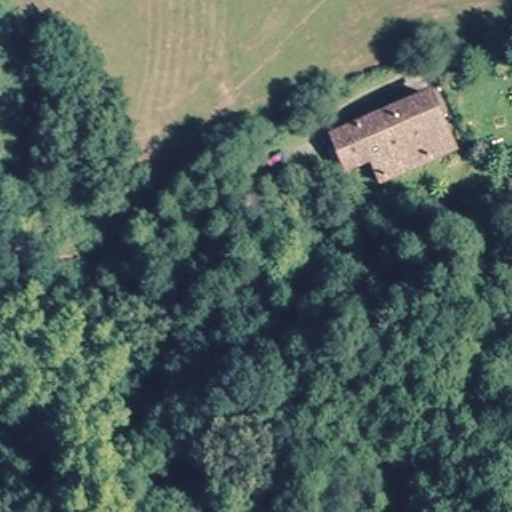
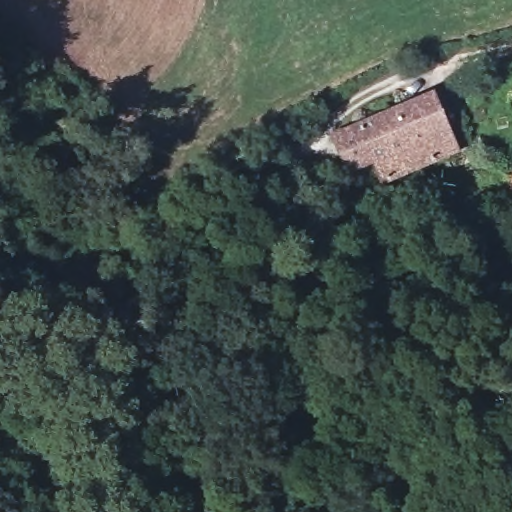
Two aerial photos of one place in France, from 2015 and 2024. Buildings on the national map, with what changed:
unchanged [(470,129),(452,134),(460,157),(382,182),(378,170),(357,177),(341,132),(457,90),(470,129)]

